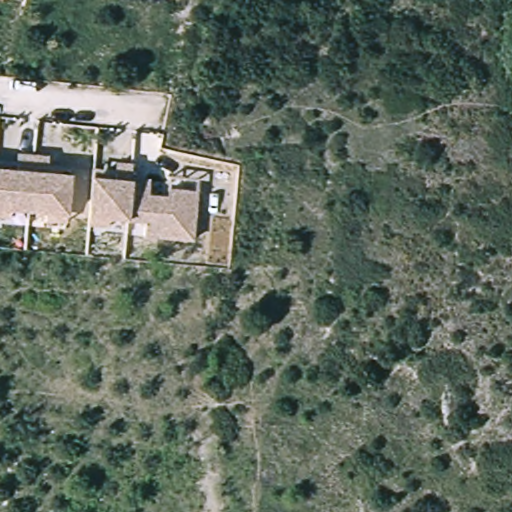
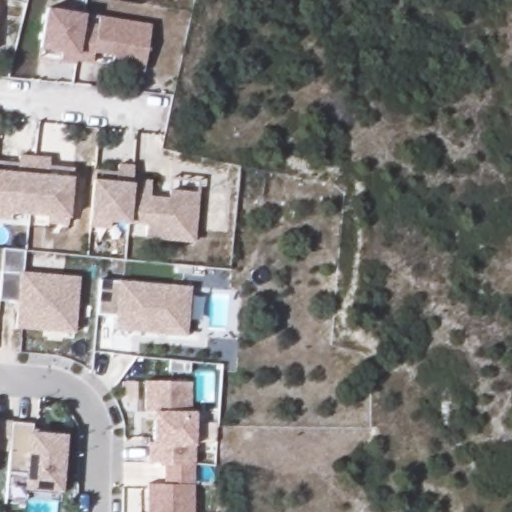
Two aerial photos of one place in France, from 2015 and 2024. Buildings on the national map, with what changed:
unchanged [(43,7),(80,14),(79,22),(72,59),(71,63),(55,60),(57,51),(36,47),(43,7)]
unchanged [(79,22),(95,24),(96,17),(147,26),(139,71),(107,66),(109,55),(90,51),(88,62),(72,59),(79,22)]
unchanged [(16,176),(17,159),(32,160),(27,217),(0,214),(0,175),(16,176)]
unchanged [(32,160),(47,162),(46,179),(69,181),(65,220),(27,217),(32,160)]
unchanged [(91,186),(92,183),(115,186),(116,177),(117,168),(132,170),(126,226),(88,222),(91,186)]
unchanged [(152,178),(151,196),(167,197),(168,190),(199,193),(195,242),(144,237),(145,226),(126,226),(131,177),(152,178)]
new [(40,334),(12,331),(15,306),(0,304),(0,275),(75,281),(71,329),(70,336),(40,334)]
new [(95,284),(186,292),(182,340),(111,334),(112,321),(92,319),(95,284)]
new [(162,483),(163,463),(148,463),(148,447),(148,442),(153,442),(153,412),(145,412),(145,380),(190,381),(190,411),(195,412),(194,451),(193,464),(191,464),(190,508),(190,512),(144,512),(145,483),(162,483)]
new [(28,423),(28,429),(47,431),(47,437),(65,438),(58,497),(2,494),(7,450),(0,449),(0,420),(28,423)]

